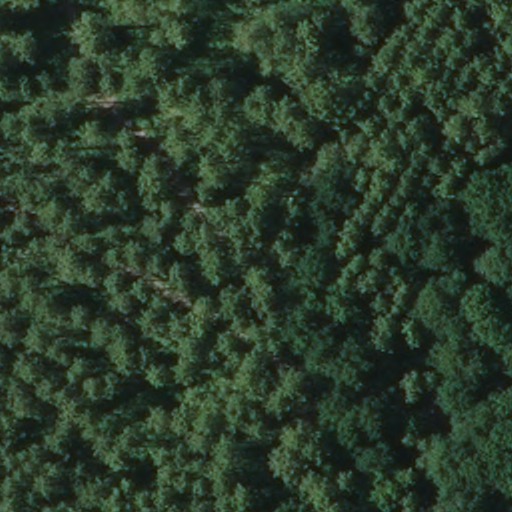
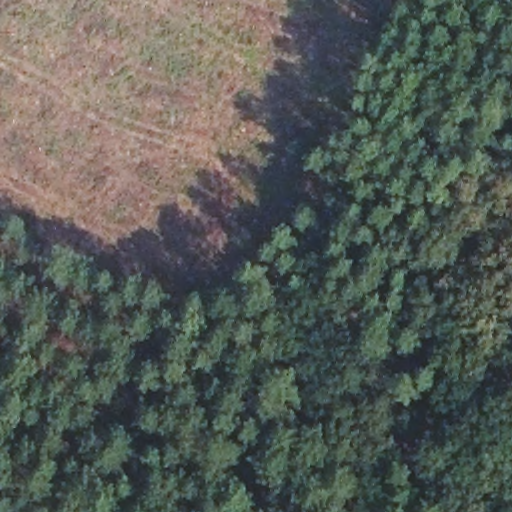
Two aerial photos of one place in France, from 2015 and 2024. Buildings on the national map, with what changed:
unchanged [(481,135),(483,93),(512,94),(512,109),(510,139),(481,135)]
unchanged [(512,493),(512,512),(466,512),(466,493),(512,493)]

